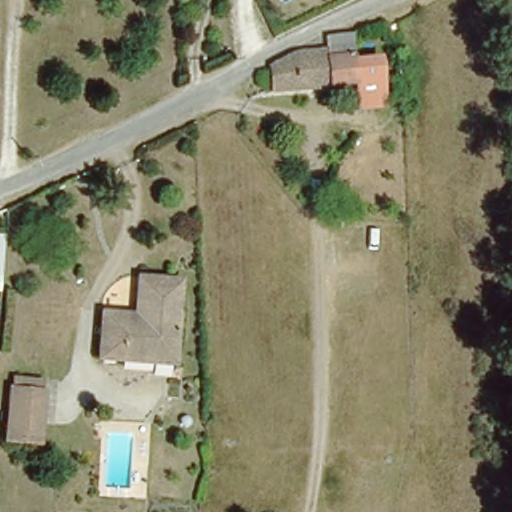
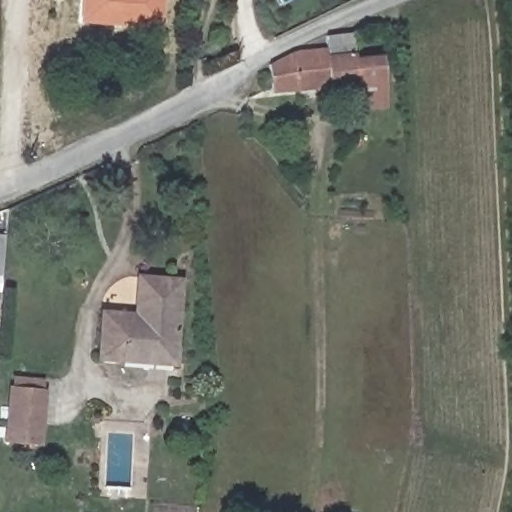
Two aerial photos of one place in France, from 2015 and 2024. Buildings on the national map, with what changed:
new [(159,21),(141,20),(141,25),(78,22),(80,0),(161,0),(159,21)]
unchanged [(354,57),(355,84),(272,91),(270,62),(294,51),(326,48),(324,35),(352,31),(354,57)]
unchanged [(386,56),(387,110),(359,112),(355,84),(354,57),(386,56)]
unchanged [(0,292),(0,235),(4,235),(0,292)]
unchanged [(101,306),(135,308),(138,272),(179,274),(173,358),(98,353),(101,306)]
unchanged [(5,437),(10,386),(10,377),(42,380),(41,388),(37,440),(5,437)]

